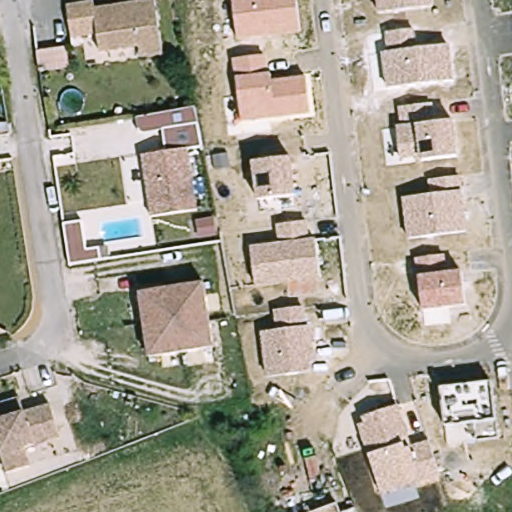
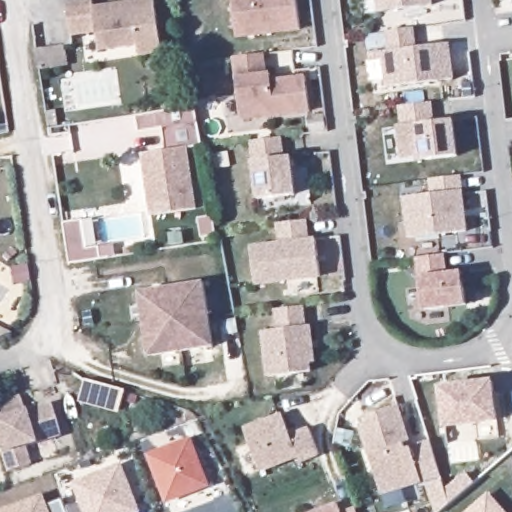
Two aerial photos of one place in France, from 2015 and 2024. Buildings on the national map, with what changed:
unchanged [(115,4),(129,2),(139,0),(159,0),(167,51),(145,55),(143,44),(104,50),(101,31),(76,35),(71,4),(92,0),(98,0),(99,7),(115,4)]
unchanged [(237,39),(232,0),(293,0),(297,29),(237,39)]
unchanged [(378,12),(377,0),(431,0),(432,6),(378,12)]
unchanged [(455,79),(388,86),(383,52),(389,52),(386,32),(414,30),(420,47),(450,44),(455,79)]
unchanged [(65,44),(68,64),(38,69),(35,48),(65,44)]
unchanged [(268,74),(270,82),(305,77),(308,115),(242,120),(236,79),(233,59),(263,55),(268,74)]
unchanged [(456,154),(421,160),(420,154),(401,158),(398,127),(402,126),(399,107),(432,102),(439,122),(453,122),(456,154)]
unchanged [(198,117),(202,141),(187,143),(197,204),(152,211),(142,149),(166,146),(162,122),(198,117)]
unchanged [(294,195),(257,199),(252,162),(289,159),(294,195)]
unchanged [(462,194),(467,234),(407,240),(404,199),(433,192),(428,180),(459,177),(462,194)]
unchanged [(81,220),(85,248),(98,246),(100,259),(68,264),(62,222),(81,220)]
unchanged [(308,221),(312,240),(316,279),(256,287),(251,248),(278,244),(277,224),(308,221)]
unchanged [(420,277),(416,258),(445,256),(449,275),(461,272),(465,306),(424,311),(420,277)]
new [(25,267),(27,281),(12,284),(10,269),(25,267)]
unchanged [(203,281),(213,345),(148,355),(138,291),(203,281)]
unchanged [(309,331),(314,371),(268,378),(263,334),(279,331),(275,311),(303,307),(309,331)]
unchanged [(498,421),(444,429),(439,387),(493,382),(498,421)]
unchanged [(15,395),(20,410),(46,402),(56,435),(20,446),(26,464),(3,471),(0,463),(0,400),(15,395)]
unchanged [(410,444),(428,440),(438,476),(419,483),(383,495),(370,457),(358,429),(364,425),(363,419),(397,407),(410,444)]
new [(281,415),(289,436),(308,428),(318,454),(299,461),(297,457),(258,471),(243,429),(281,415)]
new [(211,486),(166,503),(146,453),(191,436),(211,486)]
new [(141,512),(0,512),(0,509),(43,492),(49,505),(62,500),(66,508),(80,502),(72,483),(122,463),(141,512)]
new [(427,485),(441,481),(449,505),(440,512),(435,512),(427,485)]
new [(488,492),(506,512),(466,512),(488,492)]
unchanged [(338,512),(313,512),(336,503),(338,512)]
unchanged [(354,508),(355,512),(344,512),(354,508)]

